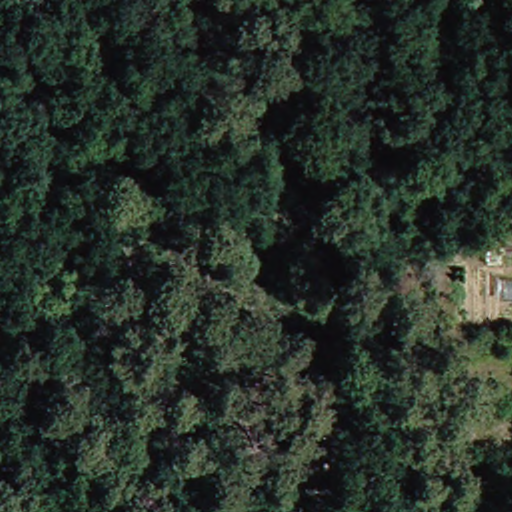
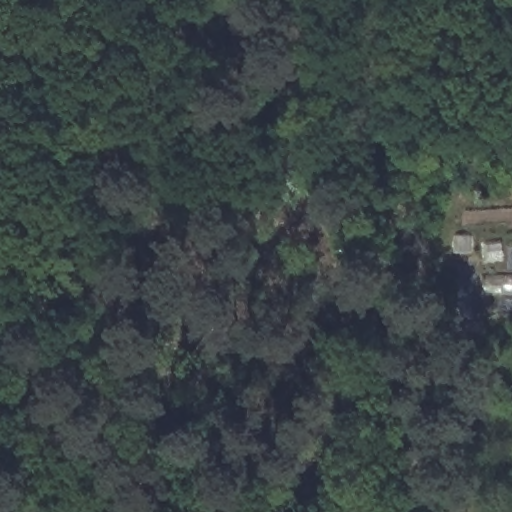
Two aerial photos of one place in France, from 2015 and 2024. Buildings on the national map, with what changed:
unchanged [(90,303),(90,334),(64,333),(62,303),(90,303)]

